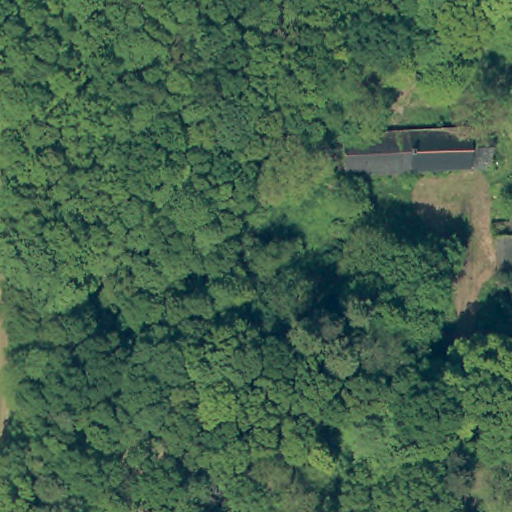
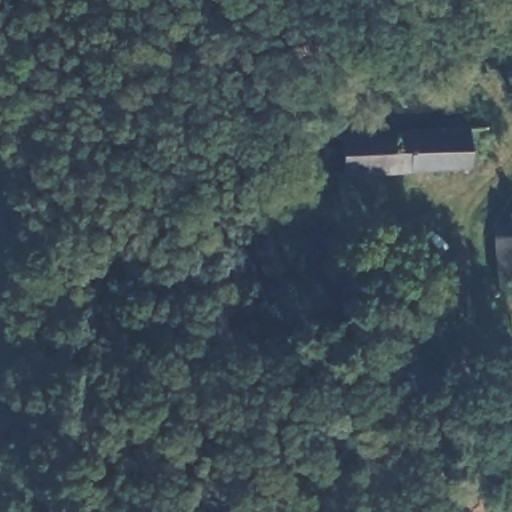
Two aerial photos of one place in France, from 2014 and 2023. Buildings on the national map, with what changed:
unchanged [(476,128),(500,126),(502,165),(478,167),(340,175),(337,137),(476,128)]
unchanged [(512,212),(512,286),(495,286),(495,222),(511,222),(511,212),(512,212)]

